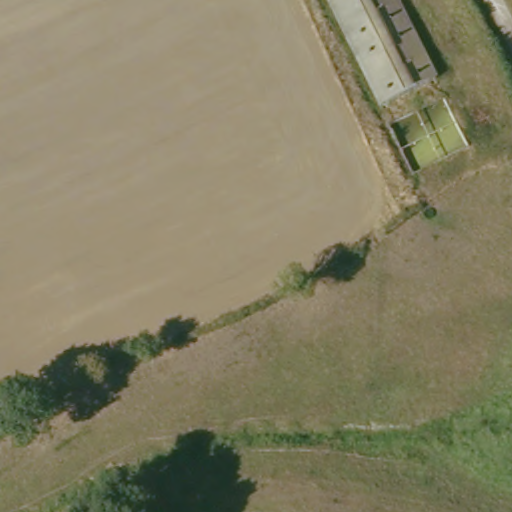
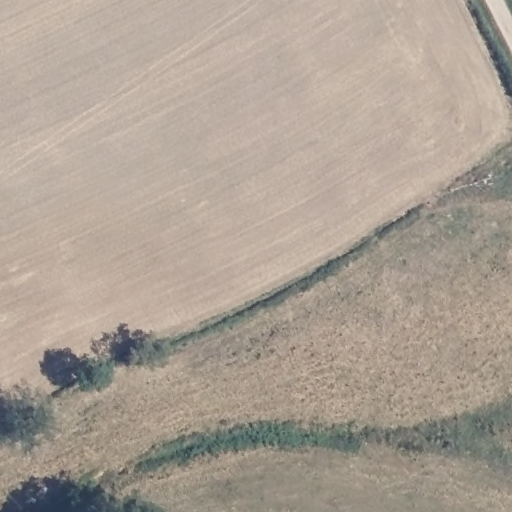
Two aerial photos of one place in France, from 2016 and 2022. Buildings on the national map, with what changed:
demolished [(432,73),(372,101),(325,0),(398,0),(432,73)]

